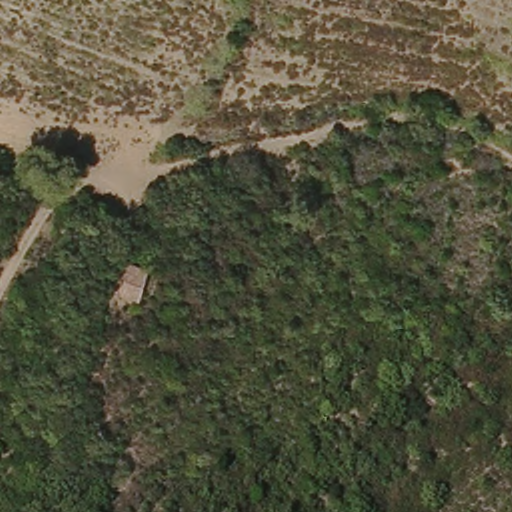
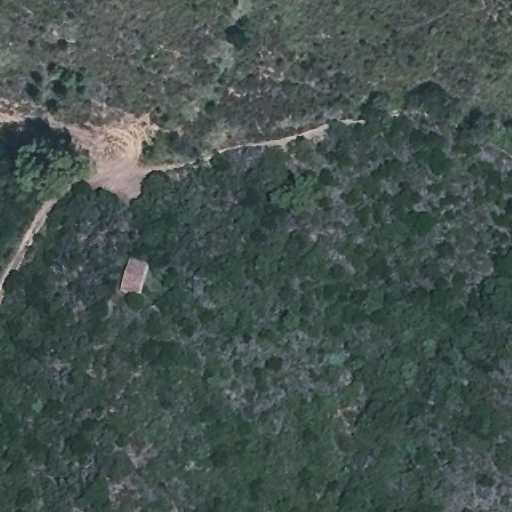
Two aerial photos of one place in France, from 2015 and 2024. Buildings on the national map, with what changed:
unchanged [(150,265),(141,295),(122,288),(130,257),(150,265)]

